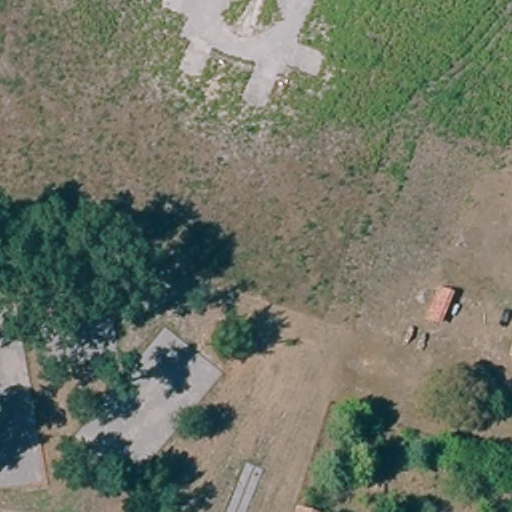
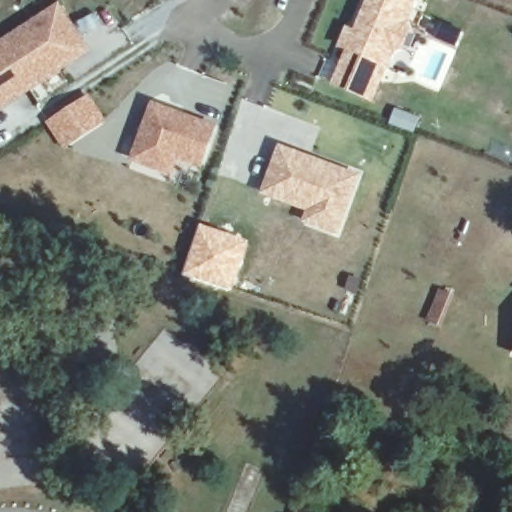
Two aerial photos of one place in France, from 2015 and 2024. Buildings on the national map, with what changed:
new [(332,84),(346,48),(339,46),(346,27),(354,29),(364,0),(417,0),(407,22),(410,27),(402,49),(393,50),(372,101),(332,84)]
new [(0,42),(56,5),(88,50),(0,108),(0,42)]
new [(106,121),(64,148),(48,122),(89,95),(106,121)]
new [(177,158),(169,173),(130,159),(151,101),(215,124),(200,166),(177,158)]
new [(279,144),(359,175),(338,235),(302,221),(305,210),(260,194),(279,144)]
new [(199,223),(248,240),(229,292),(180,275),(199,223)]
unchanged [(425,321),(438,287),(454,294),(441,327),(425,321)]
demolished [(126,466),(131,451),(202,473),(194,489),(126,466)]

